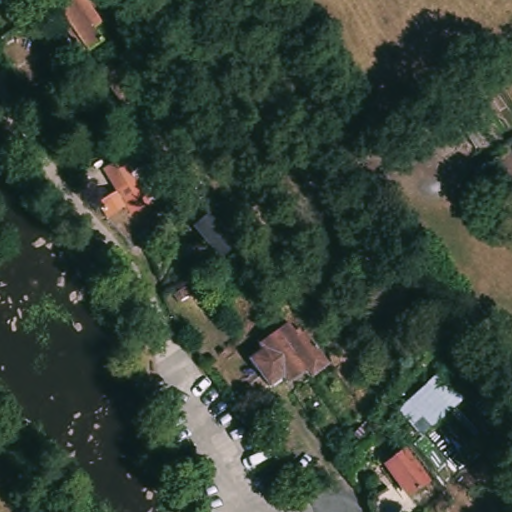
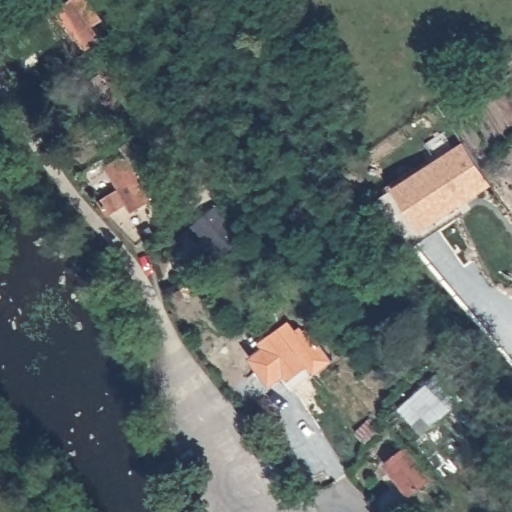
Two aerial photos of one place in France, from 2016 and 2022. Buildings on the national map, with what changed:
unchanged [(94,18),(99,23),(94,27),(101,38),(85,50),(56,10),(72,0),(82,0),(98,14),(94,18)]
unchanged [(133,87),(118,97),(101,74),(115,64),(133,87)]
new [(465,204),(469,212),(414,244),(384,198),(395,188),(465,142),(491,185),(465,204)]
unchanged [(117,190),(103,168),(124,156),(137,179),(149,200),(130,212),(124,203),(104,214),(97,200),(117,190)]
unchanged [(247,236),(227,250),(202,219),(221,205),(247,236)]
unchanged [(293,330),(300,325),(304,333),(308,330),(312,336),(330,361),(313,372),(309,365),(287,379),(284,374),(267,383),(250,359),(263,349),(258,341),(288,321),(293,330)]
unchanged [(433,378),(456,402),(420,434),(397,412),(433,378)]
unchanged [(431,481),(411,496),(388,466),(408,451),(431,481)]

